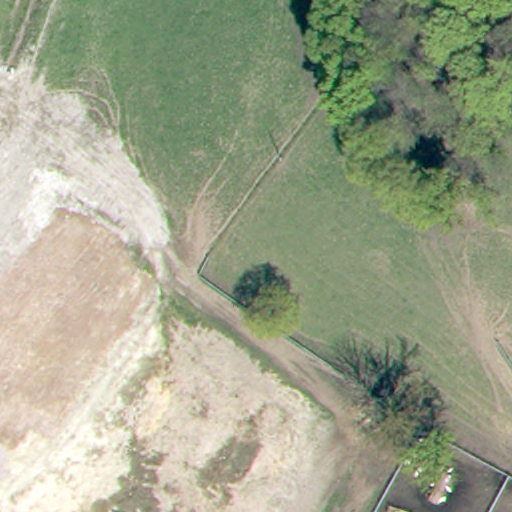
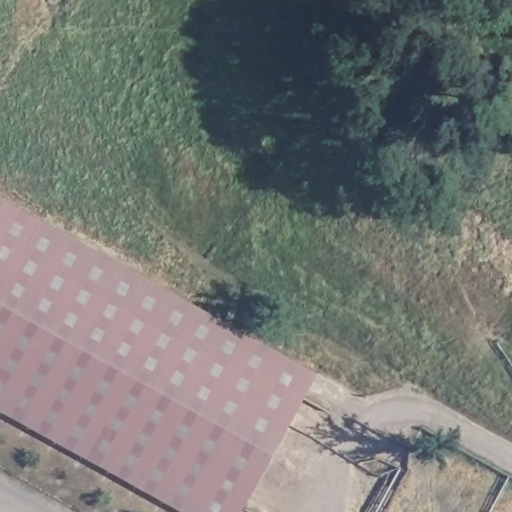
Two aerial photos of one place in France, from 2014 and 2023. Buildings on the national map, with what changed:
new [(316,370),(239,512),(185,512),(0,409),(0,195),(316,370)]

